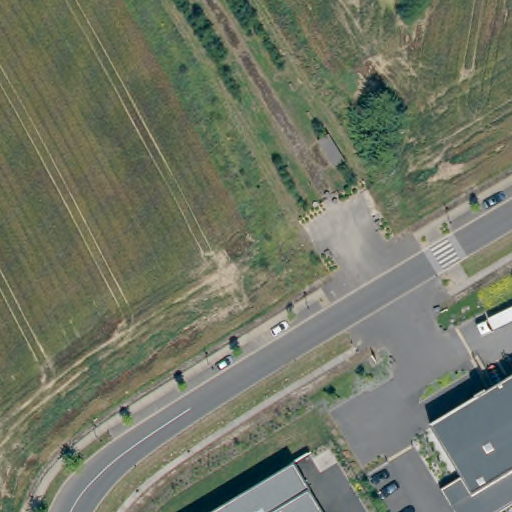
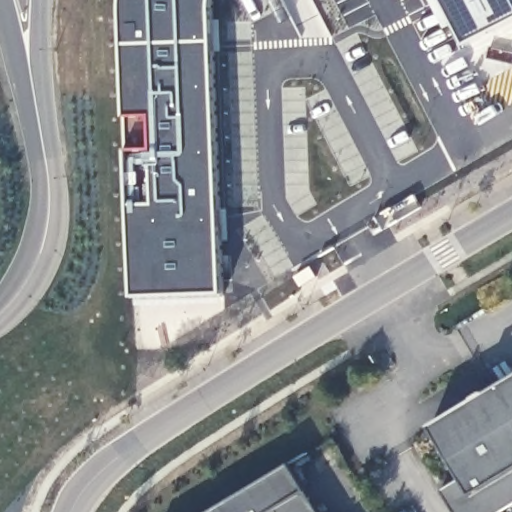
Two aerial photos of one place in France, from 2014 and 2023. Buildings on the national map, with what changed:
new [(215,27),(225,294),(134,297),(125,0),(216,0),(215,6),(215,27)]
new [(444,0),(512,0),(512,23),(467,45),(444,0)]
new [(313,266),(318,276),(302,286),(297,277),(313,266)]
unchanged [(442,493),(465,479),(433,426),(512,379),(512,505),(500,512),(455,512),(442,493)]
unchanged [(291,464),(318,512),(210,512),(291,464)]

